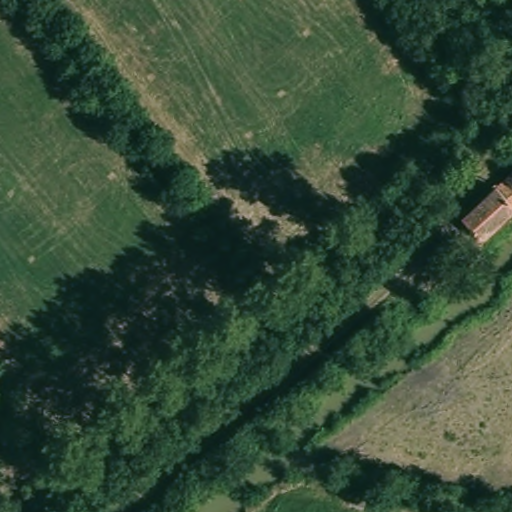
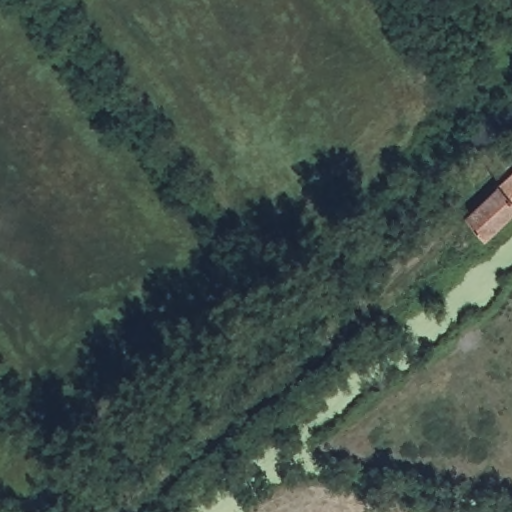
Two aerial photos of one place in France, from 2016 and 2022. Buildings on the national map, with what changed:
unchanged [(461,215),(512,171),(512,215),(483,242),(461,215)]

